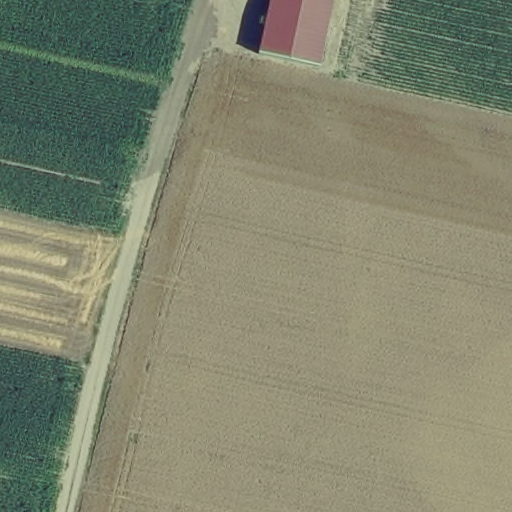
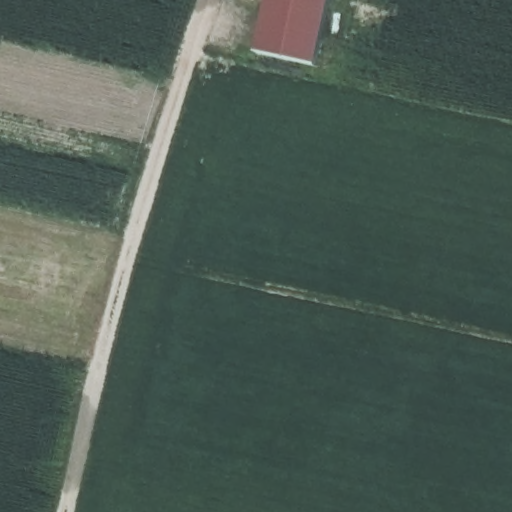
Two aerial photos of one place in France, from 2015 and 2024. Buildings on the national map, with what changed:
unchanged [(271,14),(275,0),(336,0),(330,27),(320,72),(261,59),(271,14)]

